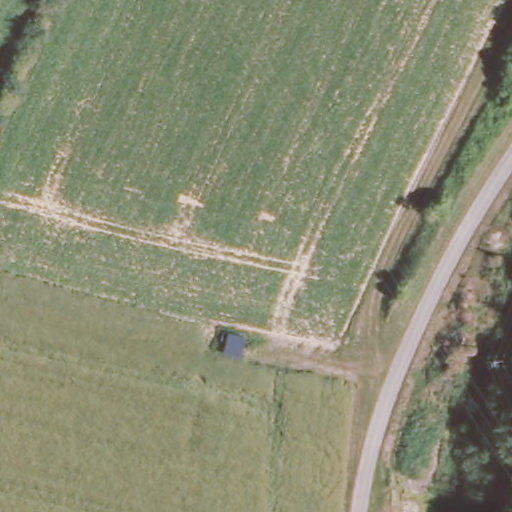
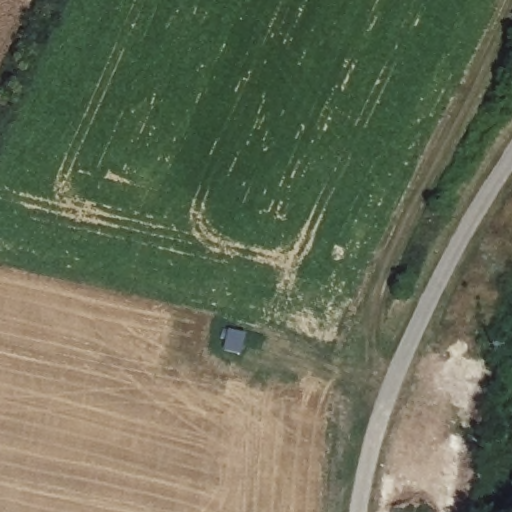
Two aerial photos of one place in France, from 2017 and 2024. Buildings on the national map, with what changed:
unchanged [(242,327),(238,347),(222,345),(225,334),(218,332),(220,322),(242,327)]

